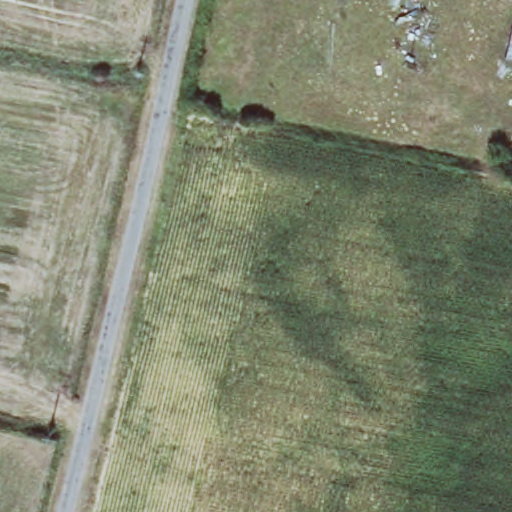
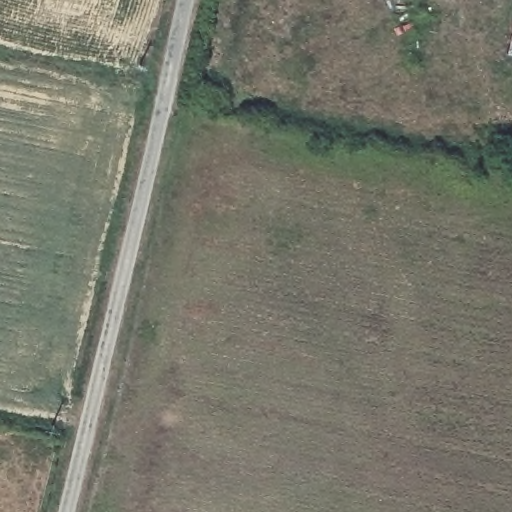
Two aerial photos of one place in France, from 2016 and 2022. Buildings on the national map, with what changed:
unchanged [(512,41),(512,54),(509,54),(512,41)]

